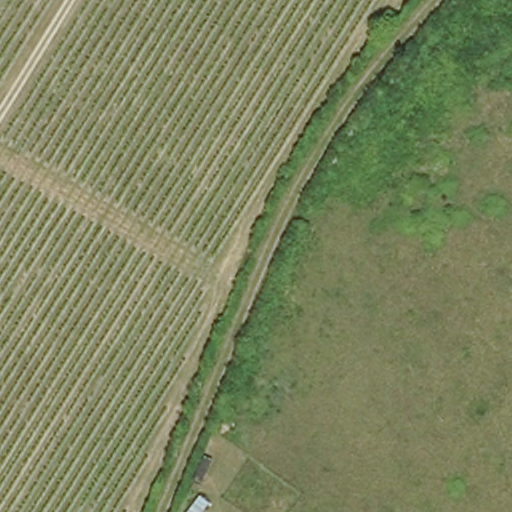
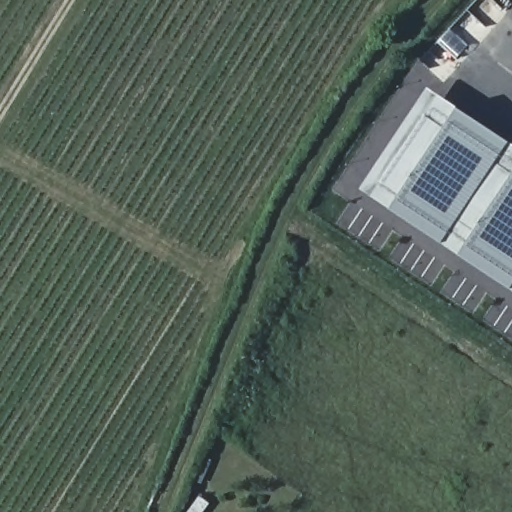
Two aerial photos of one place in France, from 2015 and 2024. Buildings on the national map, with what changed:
new [(512,138),(512,287),(359,185),(429,84),(512,138)]

